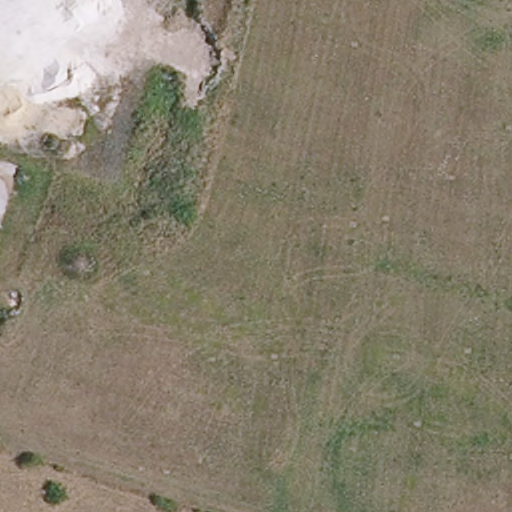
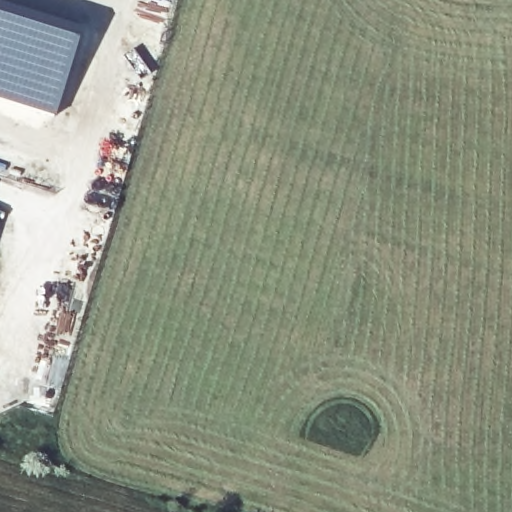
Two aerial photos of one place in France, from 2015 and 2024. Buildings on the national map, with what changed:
new [(56,114),(0,97),(0,1),(82,26),(56,114)]

